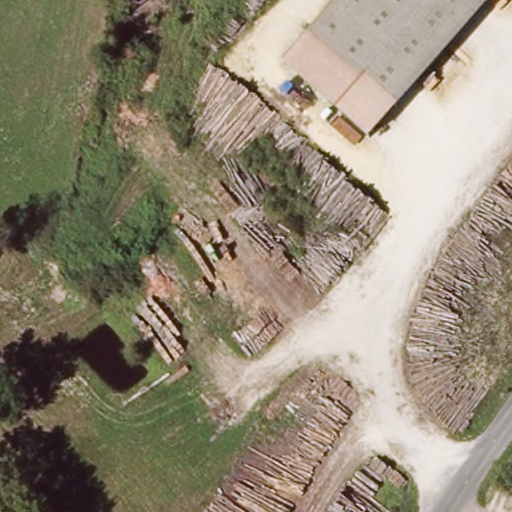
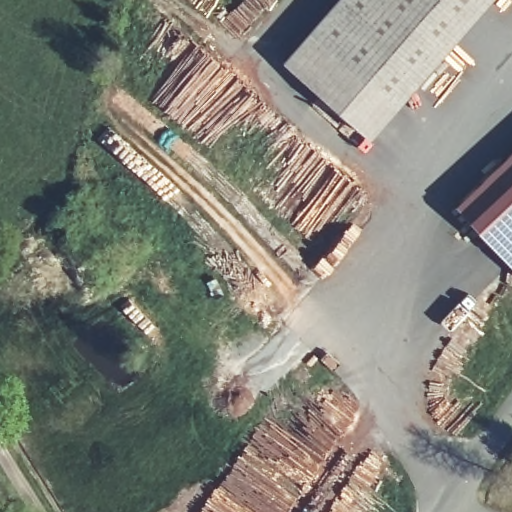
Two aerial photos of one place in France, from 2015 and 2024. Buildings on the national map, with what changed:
unchanged [(369,142),(287,61),(339,0),(489,0),(369,142)]
new [(512,256),(462,202),(512,155),(512,256)]

